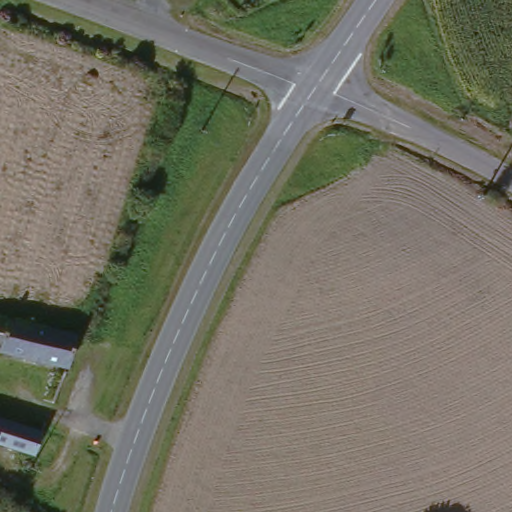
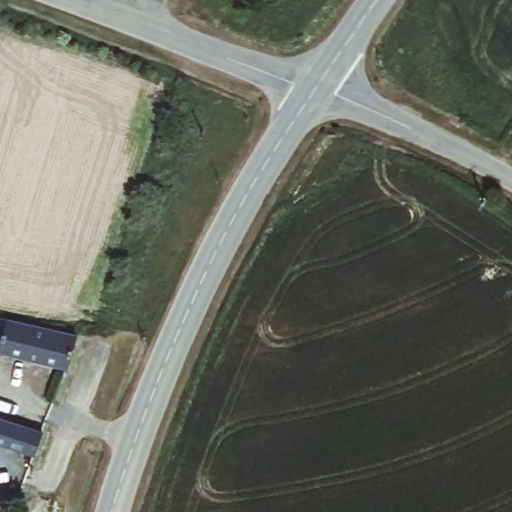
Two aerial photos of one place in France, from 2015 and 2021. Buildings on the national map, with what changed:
unchanged [(0,344),(0,312),(37,319),(30,349),(0,344)]
unchanged [(32,350),(30,349),(37,319),(79,329),(70,357),(32,350)]
unchanged [(28,444),(12,439),(0,437),(0,414),(50,425),(41,449),(28,444)]

